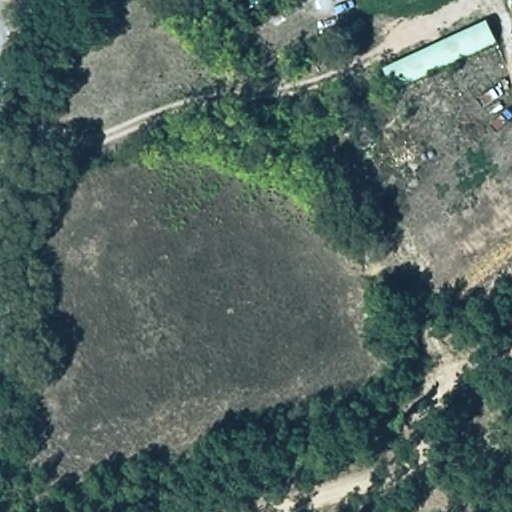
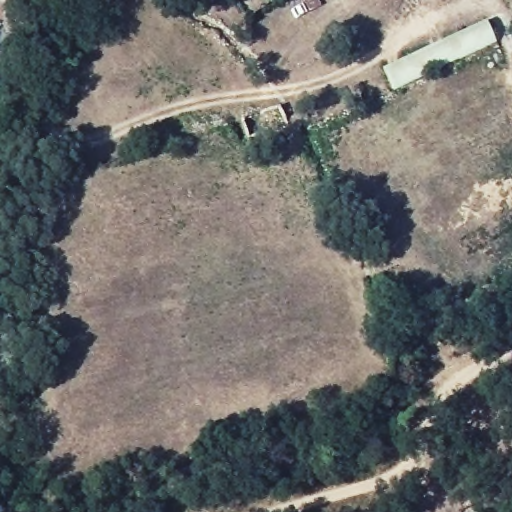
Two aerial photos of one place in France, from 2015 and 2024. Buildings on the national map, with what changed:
unchanged [(505,38),(398,75),(390,52),(497,15),(505,38)]

